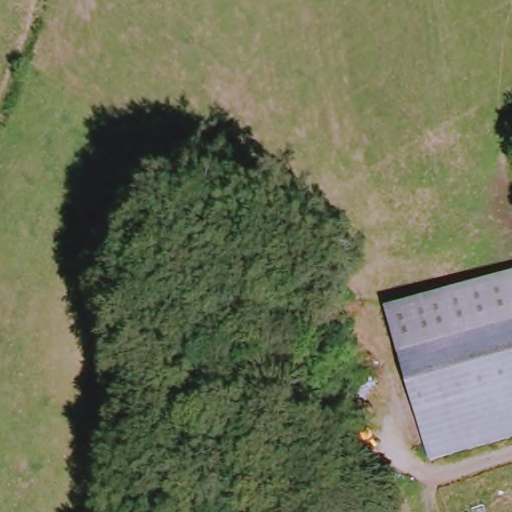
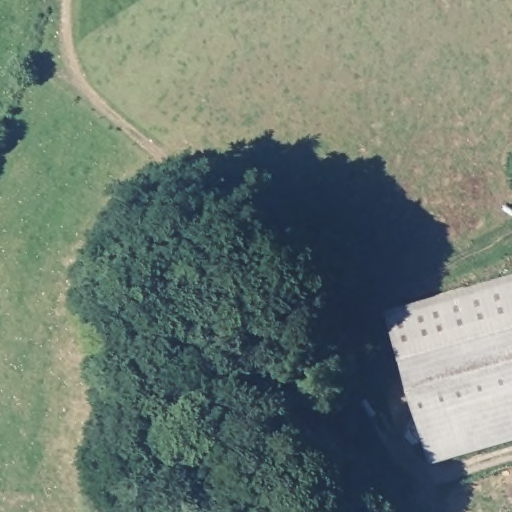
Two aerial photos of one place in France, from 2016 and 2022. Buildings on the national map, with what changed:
unchanged [(512,271),(512,433),(428,459),(384,309),(512,271)]

